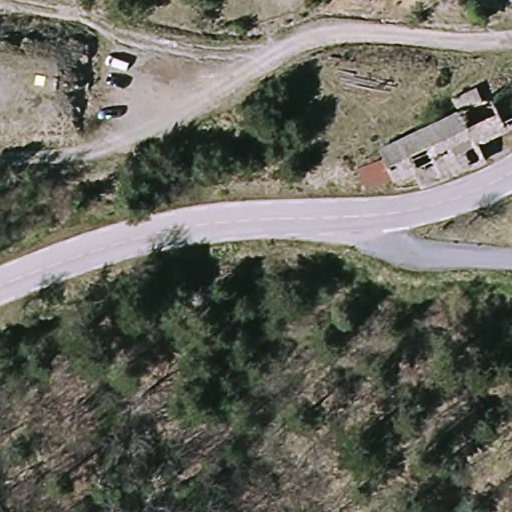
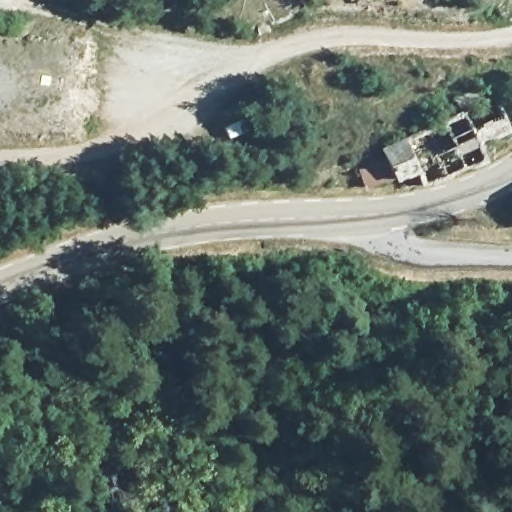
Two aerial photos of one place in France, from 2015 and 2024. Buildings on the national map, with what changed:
unchanged [(358,159),(472,109),(465,95),(486,86),(491,98),(512,88),(512,124),(479,139),(489,162),(425,191),(419,172),(396,180),(367,185),(358,159)]

